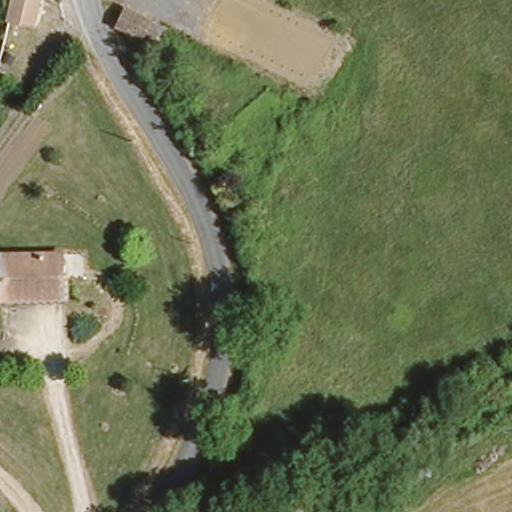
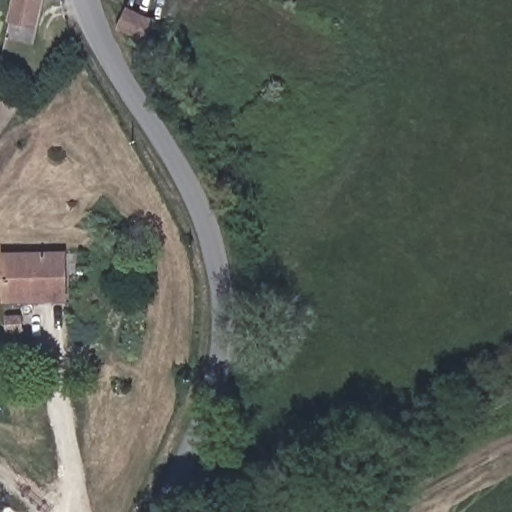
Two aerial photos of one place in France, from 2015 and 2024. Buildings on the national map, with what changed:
unchanged [(39,20),(14,18),(15,0),(41,0),(39,20)]
unchanged [(117,0),(126,0),(143,6),(136,31),(129,28),(111,21),(115,7),(117,0)]
unchanged [(64,253),(65,299),(1,299),(1,259),(1,252),(6,252),(64,253)]

